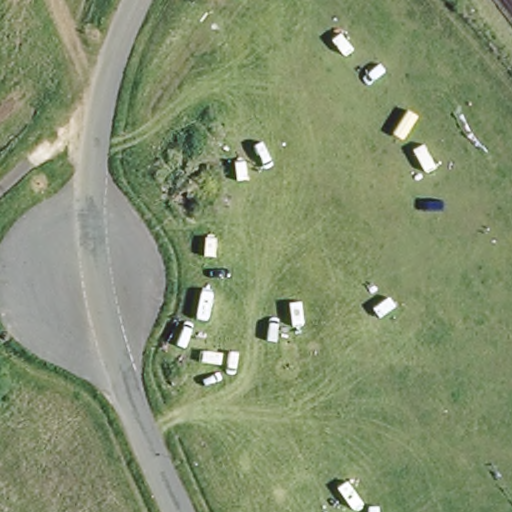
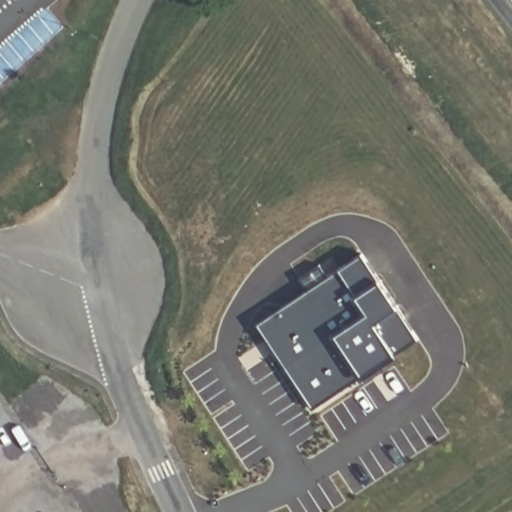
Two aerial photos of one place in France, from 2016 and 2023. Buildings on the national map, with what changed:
new [(308,292),(300,281),(320,266),(329,278),(362,253),(422,335),(319,411),(279,355),(259,328),(262,325),(308,292)]

